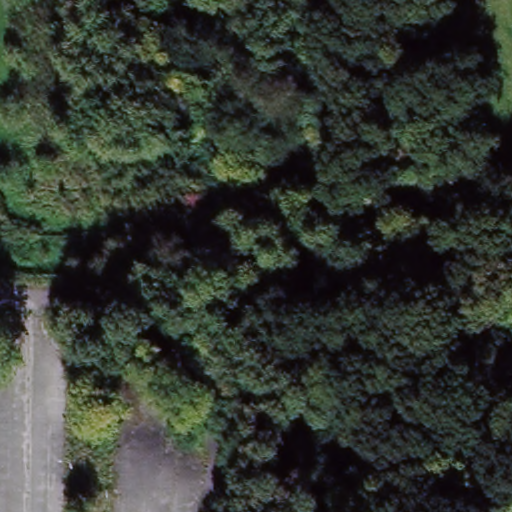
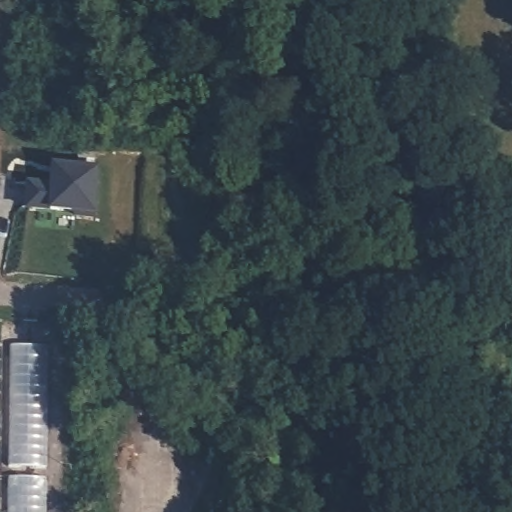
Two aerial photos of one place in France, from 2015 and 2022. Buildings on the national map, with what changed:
new [(30,184),(55,187),(57,168),(100,172),(96,220),(77,218),(77,214),(28,210),(30,184)]
new [(45,346),(47,467),(8,467),(12,346),(45,346)]
new [(45,477),(46,512),(9,512),(10,477),(45,477)]

